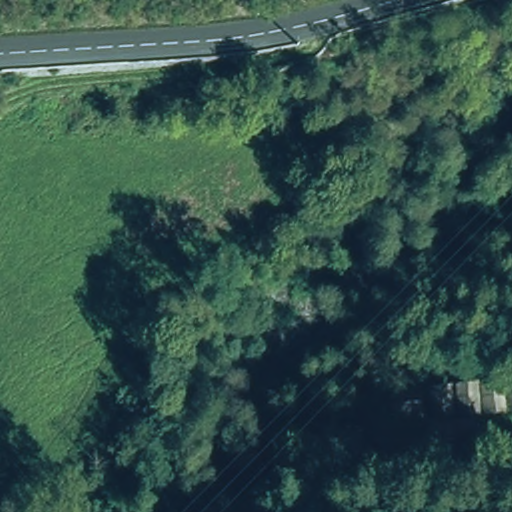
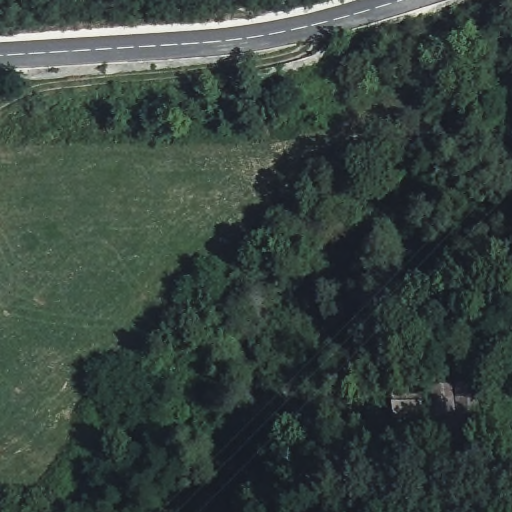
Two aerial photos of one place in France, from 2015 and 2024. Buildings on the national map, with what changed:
unchanged [(435,419),(430,386),(485,381),(512,378),(512,411),(435,419)]
unchanged [(424,392),(427,421),(394,424),(391,395),(424,392)]

